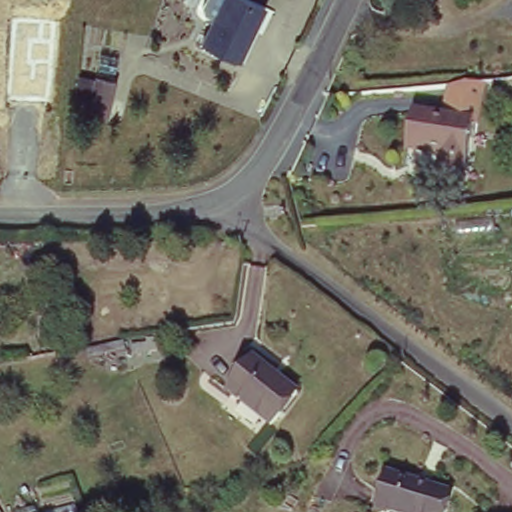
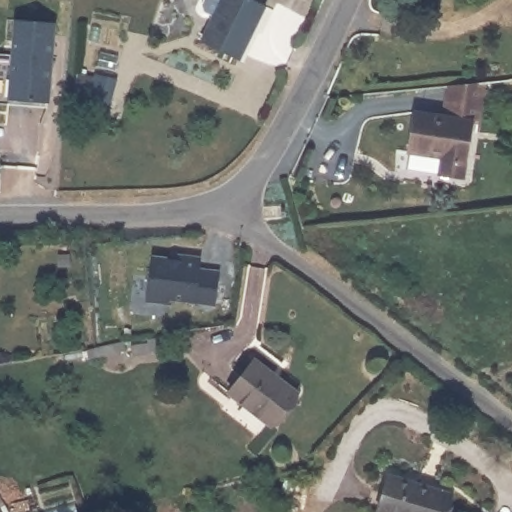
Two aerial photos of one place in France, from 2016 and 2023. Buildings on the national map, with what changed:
unchanged [(200,4),(201,0),(252,0),(263,6),(239,59),(202,42),(214,16),(202,10),(200,4)]
new [(9,97),(14,19),(55,20),(50,99),(9,97)]
unchanged [(112,98),(91,92),(94,78),(116,84),(112,98)]
unchanged [(413,118),(442,122),(447,91),(483,87),(477,127),(471,127),(461,184),(437,181),(441,164),(407,157),(413,118)]
new [(171,260),(172,252),(204,257),(202,267),(222,270),(217,304),(197,302),(197,304),(171,301),(170,305),(146,302),(152,256),(171,260)]
unchanged [(254,358),(296,393),(270,427),(226,392),(254,358)]
unchanged [(392,476),(453,493),(447,512),(380,512),(392,476)]

